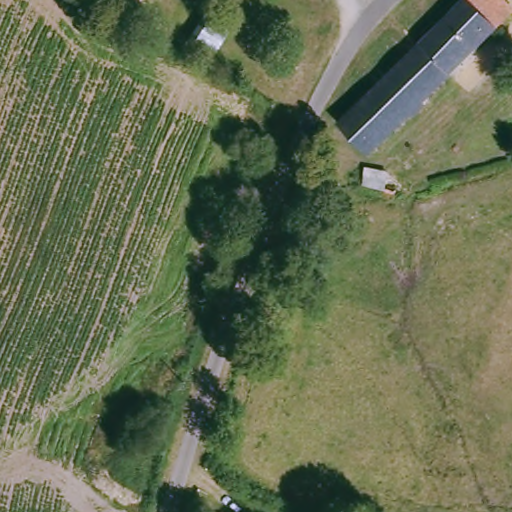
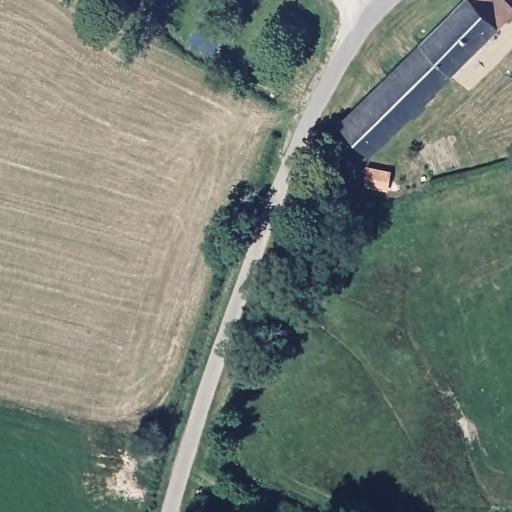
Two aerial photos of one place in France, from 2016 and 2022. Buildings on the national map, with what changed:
unchanged [(512,0),(512,21),(483,49),(454,19),(473,0),(512,0)]
unchanged [(207,14),(231,29),(215,55),(190,40),(207,14)]
unchanged [(427,46),(454,19),(483,49),(456,76),(427,46)]
unchanged [(407,66),(427,46),(456,76),(434,97),(407,66)]
unchanged [(271,78),(284,51),(306,61),(293,88),(271,78)]
unchanged [(434,97),(377,153),(350,123),(407,66),(434,97)]
unchanged [(366,189),(368,171),(383,173),(382,188),(366,189)]

